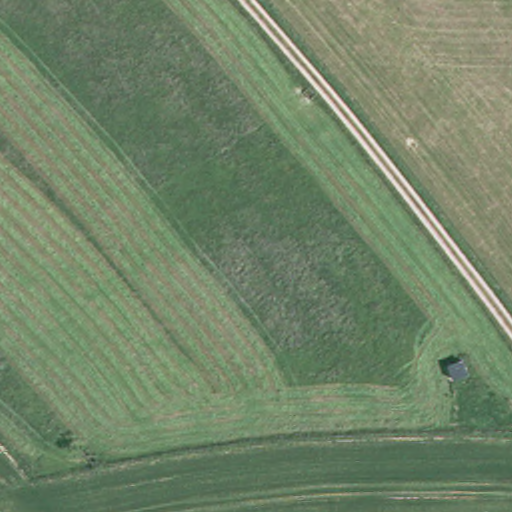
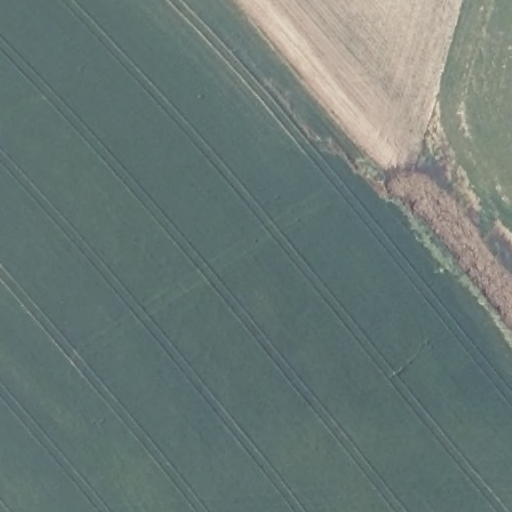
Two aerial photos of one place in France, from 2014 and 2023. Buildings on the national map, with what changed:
unchanged [(465,353),(479,366),(454,378),(447,364),(465,353)]

